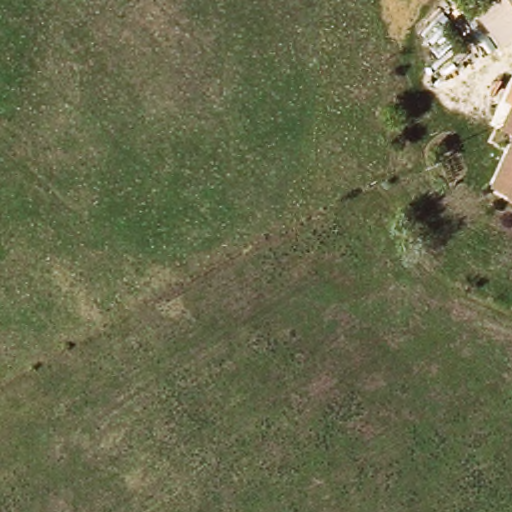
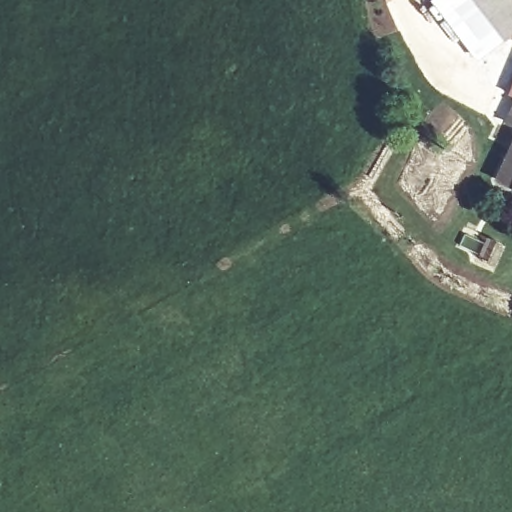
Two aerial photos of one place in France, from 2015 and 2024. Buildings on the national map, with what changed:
new [(473,0),(503,39),(477,62),(430,0),(431,0),(474,0),(473,0)]
unchanged [(473,0),(474,0),(512,0),(512,36),(505,41),(473,0)]
unchanged [(497,185),(512,149),(512,191),(497,185)]

